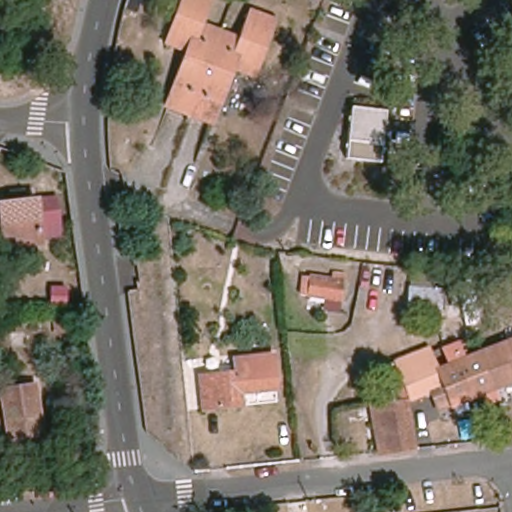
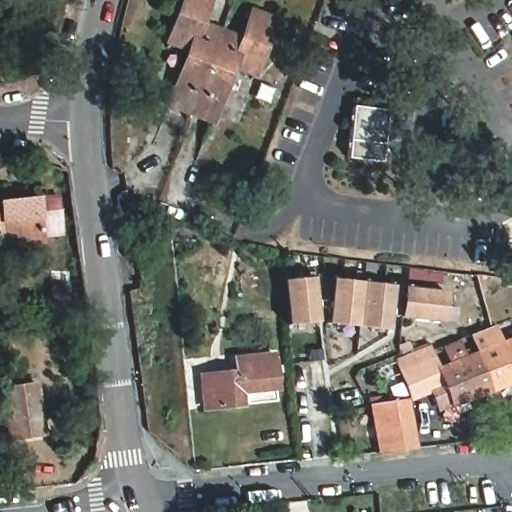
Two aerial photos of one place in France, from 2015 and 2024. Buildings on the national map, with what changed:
unchanged [(180,85),(195,45),(174,36),(187,0),(212,0),(204,21),(246,37),(257,10),(278,18),(260,69),(237,61),(222,101),(216,119),(172,103),(180,85)]
unchanged [(386,111),(381,163),(346,158),(352,106),(386,111)]
unchanged [(42,243),(3,246),(0,209),(0,202),(37,198),(42,243)]
demolished [(340,300),(302,295),(303,277),(332,280),(333,273),(343,275),(340,300)]
new [(313,275),(318,321),(287,322),(282,278),(313,275)]
new [(327,322),(332,276),(363,280),(357,326),(327,322)]
new [(357,326),(363,280),(393,284),(387,329),(357,326)]
new [(443,321),(400,317),(403,284),(446,290),(443,321)]
demolished [(452,296),(451,311),(441,310),(441,314),(409,312),(411,293),(432,295),(452,296)]
unchanged [(492,388),(477,353),(512,339),(512,380),(495,387),(492,388)]
unchanged [(457,343),(464,358),(477,353),(492,388),(495,387),(499,397),(487,401),(483,391),(472,396),(458,362),(452,345),(457,343)]
unchanged [(452,404),(450,398),(434,404),(428,390),(445,384),(442,376),(438,369),(451,364),(445,348),(452,345),(458,362),(472,396),(467,398),(452,404)]
unchanged [(430,348),(431,350),(438,369),(442,376),(445,384),(428,390),(412,397),(397,362),(430,348)]
unchanged [(277,388),(240,392),(241,406),(205,409),(201,376),(236,372),(235,359),(273,355),(277,388)]
unchanged [(42,434),(10,440),(2,390),(35,385),(42,434)]
unchanged [(413,448),(380,453),(372,407),(405,402),(413,448)]

